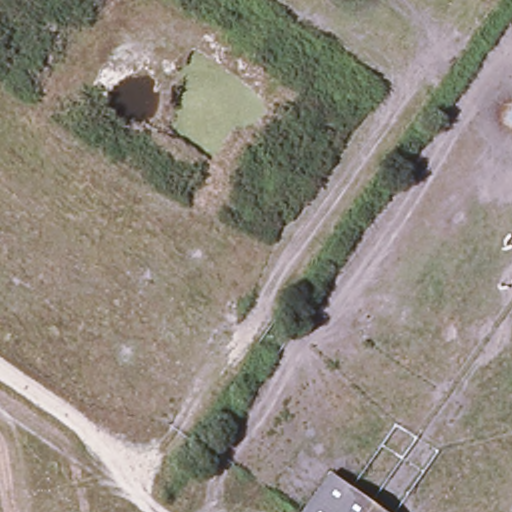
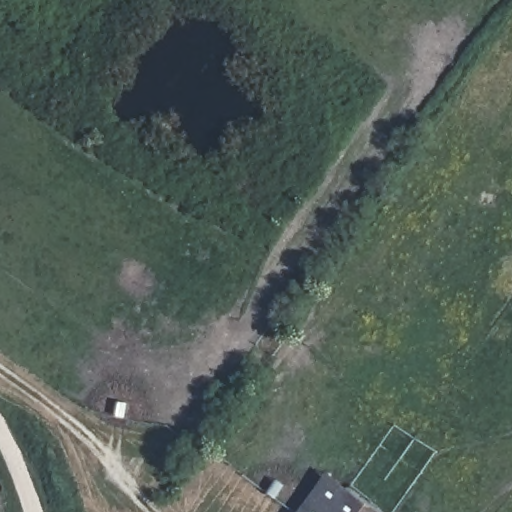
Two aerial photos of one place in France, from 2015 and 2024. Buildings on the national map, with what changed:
unchanged [(331,512),(297,512),(323,475),(346,491),(331,512)]
unchanged [(374,512),(331,512),(346,491),(374,512)]

